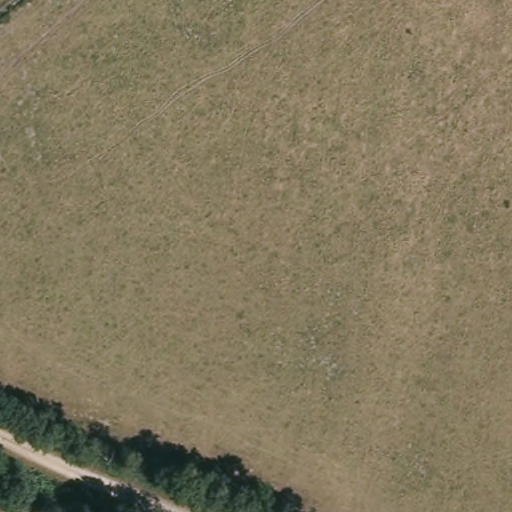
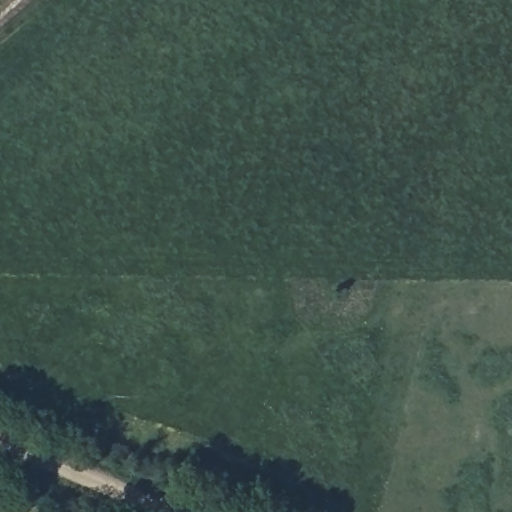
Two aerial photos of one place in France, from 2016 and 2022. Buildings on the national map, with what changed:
[]

